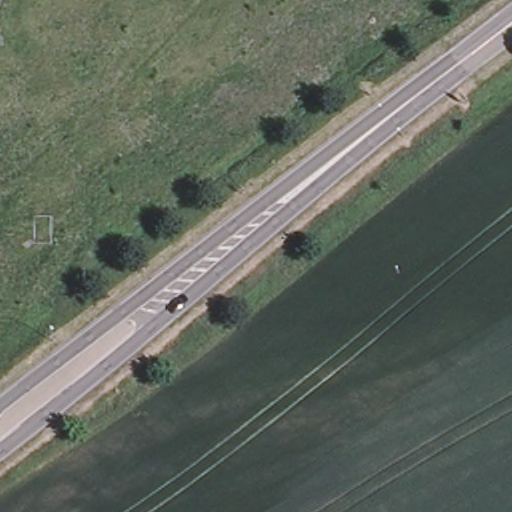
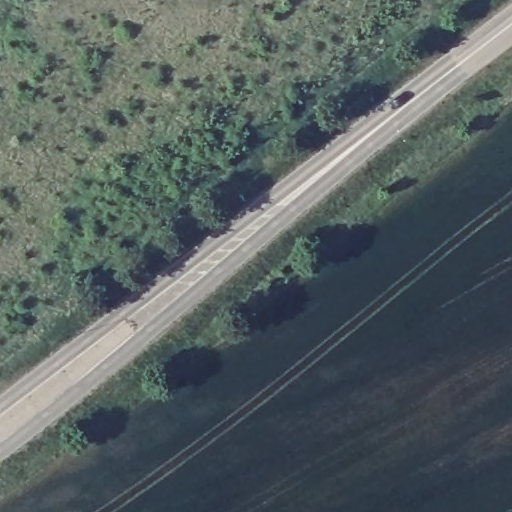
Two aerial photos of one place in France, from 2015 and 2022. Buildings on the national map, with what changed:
[]

